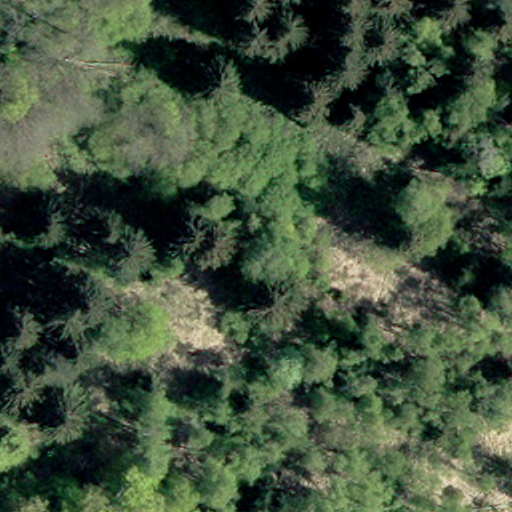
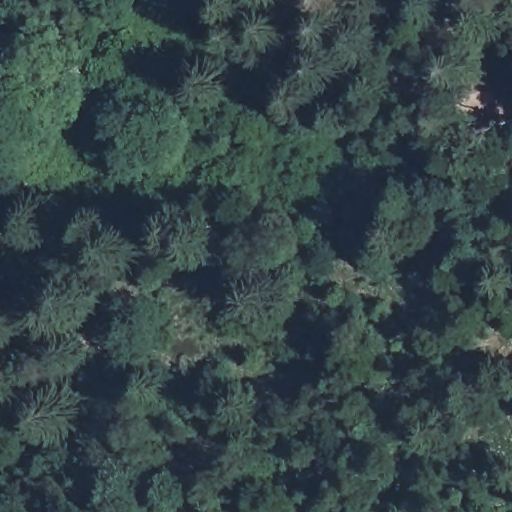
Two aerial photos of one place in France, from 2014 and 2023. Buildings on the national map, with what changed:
[]

